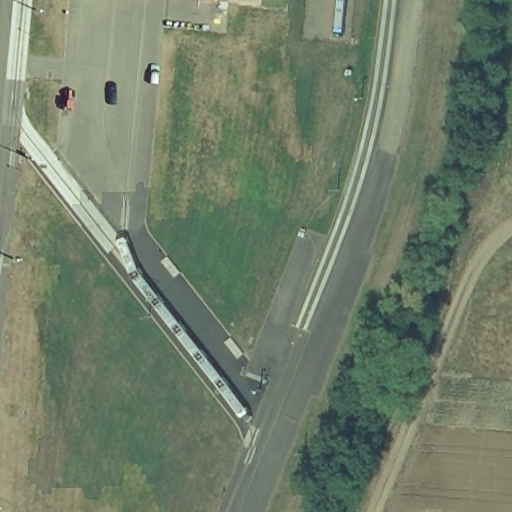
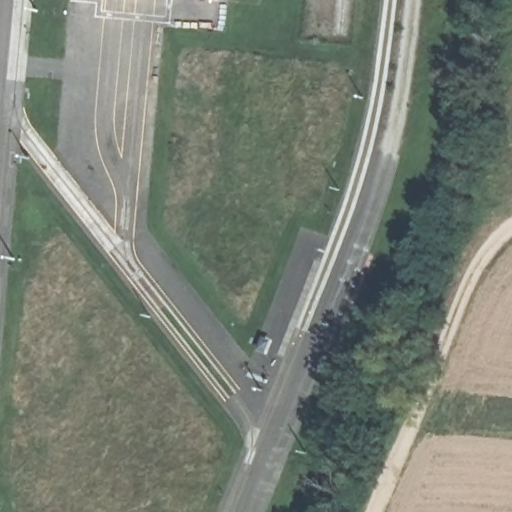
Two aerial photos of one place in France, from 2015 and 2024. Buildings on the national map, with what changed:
unchanged [(205,0),(226,0),(225,1),(205,0)]

